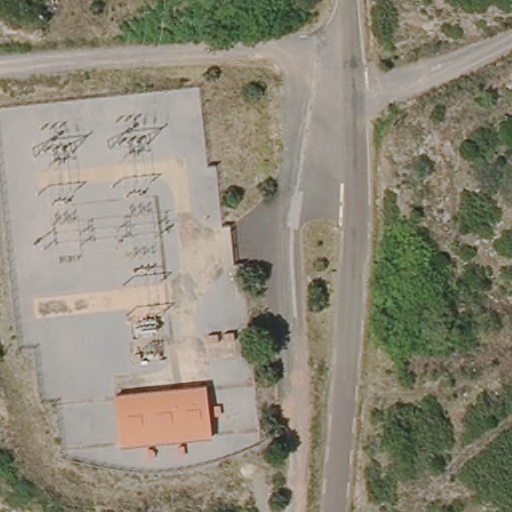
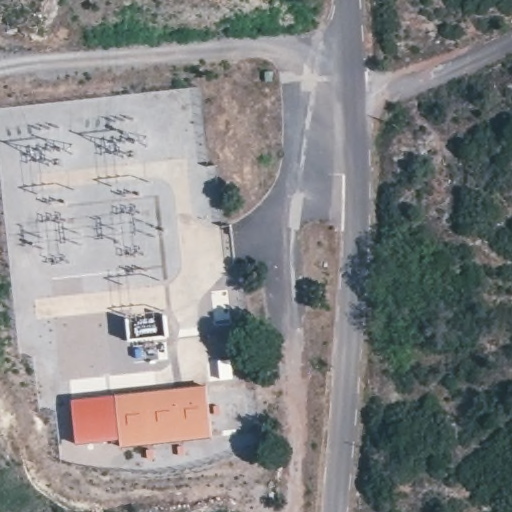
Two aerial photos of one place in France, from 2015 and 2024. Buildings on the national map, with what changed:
unchanged [(207,384),(215,433),(122,443),(115,394),(207,384)]
new [(115,396),(122,439),(76,445),(71,401),(115,396)]

